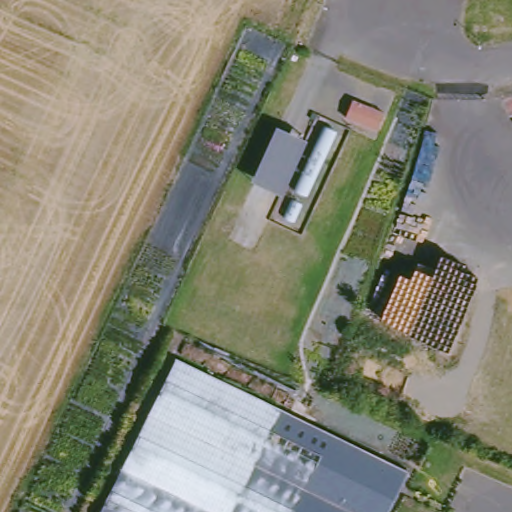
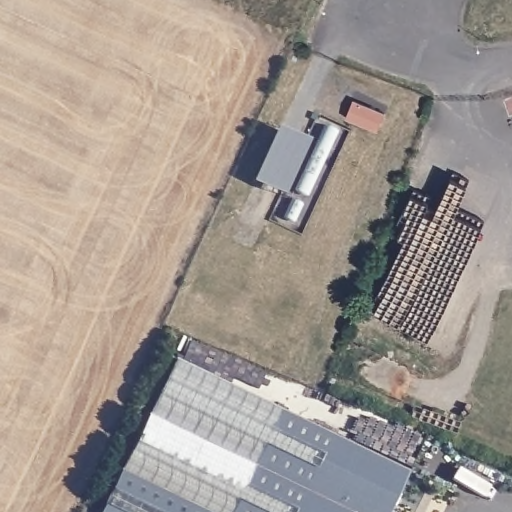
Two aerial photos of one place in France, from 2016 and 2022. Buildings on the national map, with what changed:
unchanged [(178,359),(410,470),(390,512),(104,512),(178,359)]

